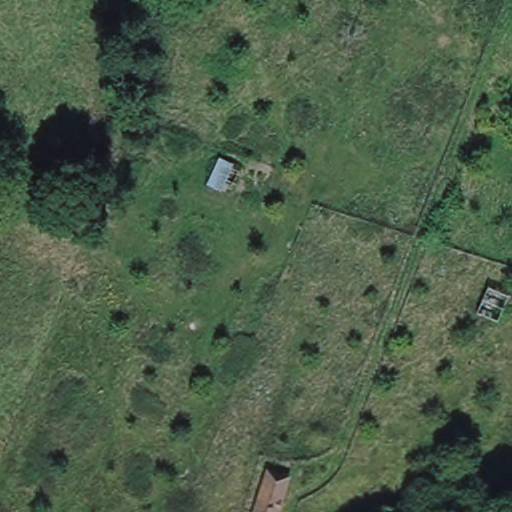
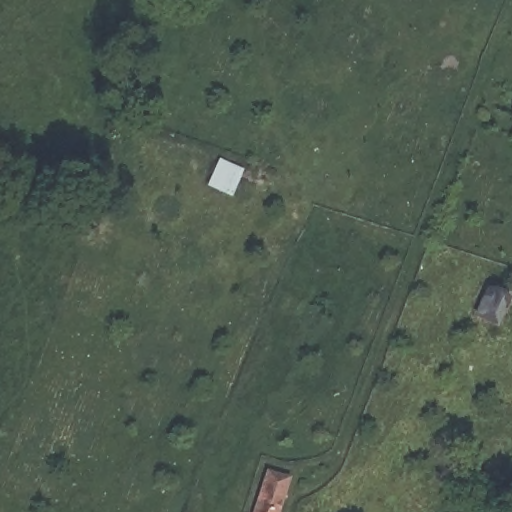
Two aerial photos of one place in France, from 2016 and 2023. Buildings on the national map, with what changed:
unchanged [(209,187),(221,158),(251,169),(236,197),(209,187)]
unchanged [(275,512),(251,512),(265,471),(287,478),(275,512)]

